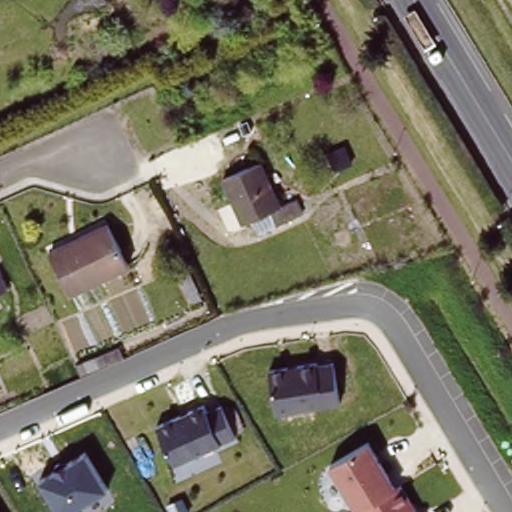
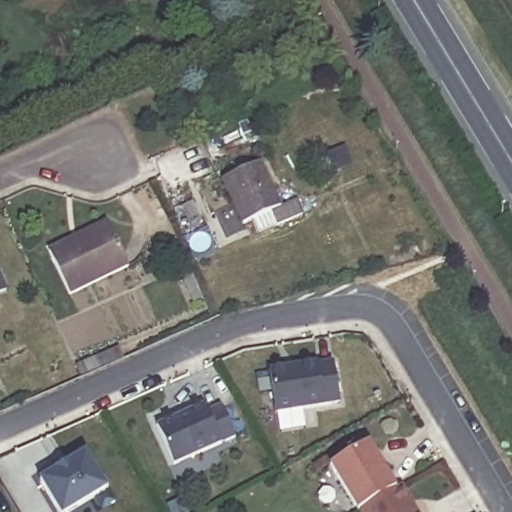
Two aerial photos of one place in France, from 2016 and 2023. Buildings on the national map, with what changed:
unchanged [(264,162),(285,205),(297,200),(304,214),(277,226),(270,214),(245,225),(225,180),(264,162)]
unchanged [(108,224),(127,267),(68,295),(48,252),(108,224)]
unchanged [(5,290),(0,293),(0,280),(5,290)]
unchanged [(332,358),(339,404),(277,412),(272,366),(332,358)]
unchanged [(235,437),(221,444),(174,464),(157,425),(203,404),(205,410),(222,405),(235,437)]
unchanged [(418,512),(359,512),(358,511),(356,512),(354,512),(327,465),(369,441),(395,487),(402,484),(418,512)]
unchanged [(83,450),(105,486),(64,512),(59,512),(40,477),(83,450)]

